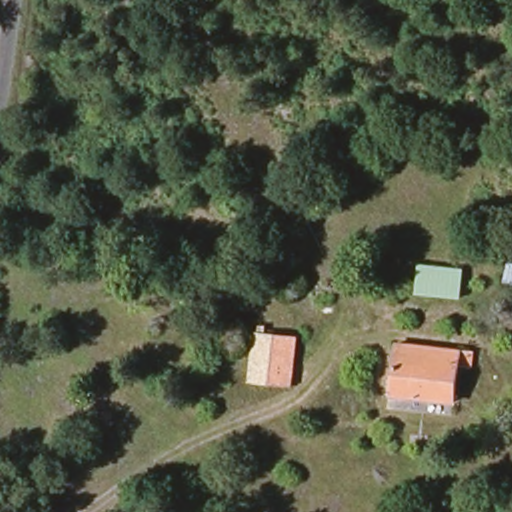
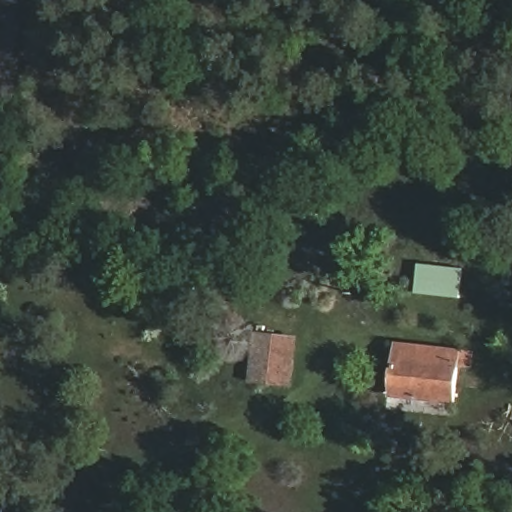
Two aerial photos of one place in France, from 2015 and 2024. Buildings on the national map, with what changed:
unchanged [(500,287),(512,247),(512,289),(500,287)]
unchanged [(418,267),(464,270),(462,279),(459,300),(418,295),(418,275),(418,267)]
unchanged [(251,384),(255,337),(291,340),(287,387),(251,384)]
unchanged [(395,359),(396,348),(457,353),(473,354),(472,367),(456,364),(450,404),(392,401),(395,359)]

